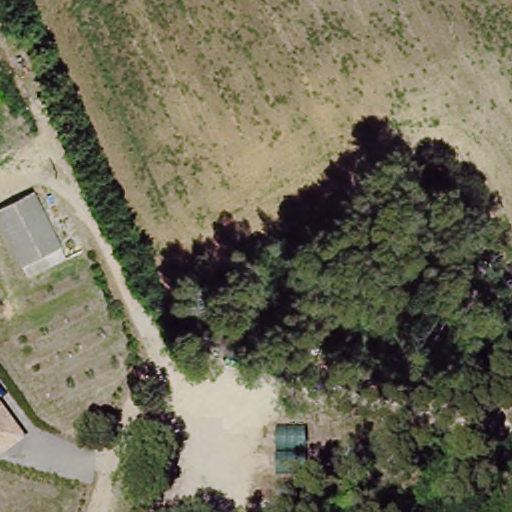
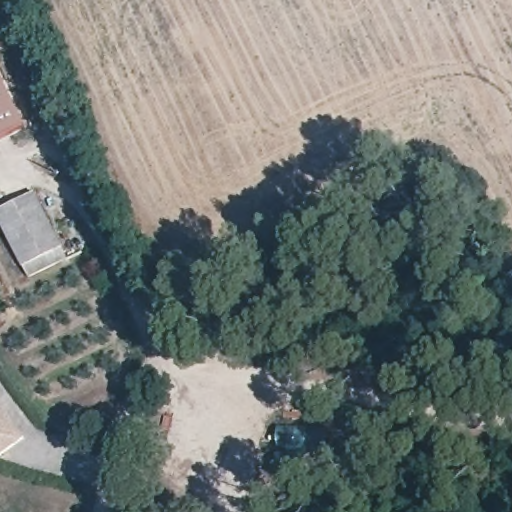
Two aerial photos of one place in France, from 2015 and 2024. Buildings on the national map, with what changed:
new [(26,125),(0,137),(0,74),(26,125)]
unchanged [(0,217),(0,204),(34,187),(70,256),(28,276),(0,217)]
demolished [(3,306),(0,308),(0,301),(3,306)]
unchanged [(32,437),(5,461),(0,456),(0,403),(32,437)]

